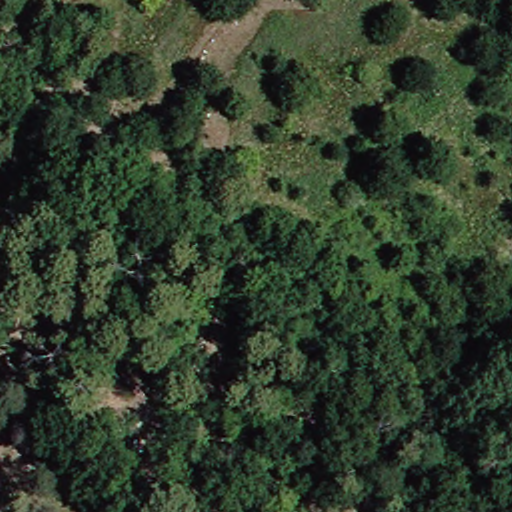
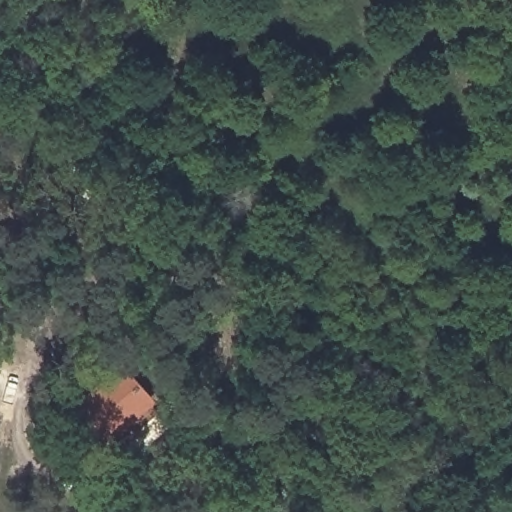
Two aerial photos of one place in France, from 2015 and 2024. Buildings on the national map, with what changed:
new [(125,420),(111,431),(86,396),(126,370),(162,409),(134,434),(125,420)]

